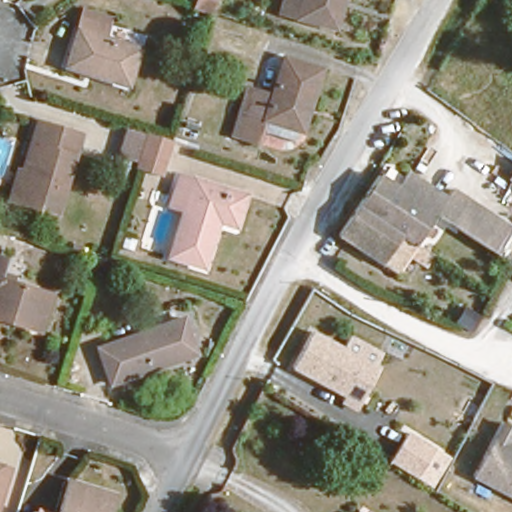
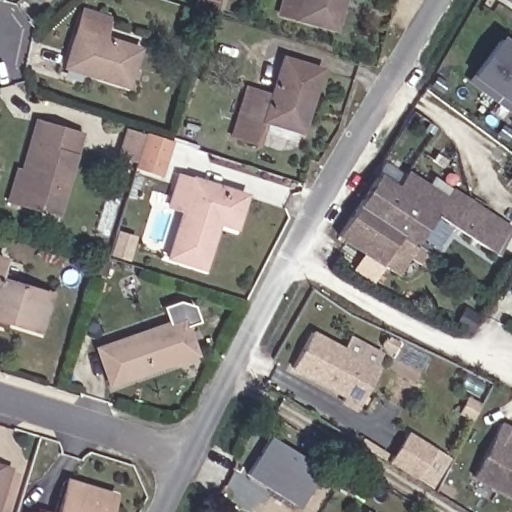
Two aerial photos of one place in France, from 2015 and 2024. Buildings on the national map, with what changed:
new [(209,10),(191,4),(192,0),(212,0),(209,10)]
unchanged [(267,7),(269,0),(341,0),(332,27),(267,7)]
unchanged [(62,60),(82,5),(106,11),(100,31),(141,44),(127,81),(62,60)]
new [(235,18),(222,56),(197,47),(209,10),(235,18)]
new [(502,39),(512,47),(512,101),(476,74),(502,39)]
unchanged [(246,80),(253,82),(271,88),(285,55),(323,67),(295,138),(259,126),(255,136),(235,129),(229,127),(246,80)]
unchanged [(16,163),(22,165),(32,137),(34,138),(43,117),(88,132),(56,214),(17,201),(4,197),(16,163)]
unchanged [(175,137),(161,177),(129,168),(140,129),(175,137)]
unchanged [(354,210),(380,170),(396,180),(407,165),(422,176),(448,194),(437,210),(413,246),(354,210)]
unchanged [(512,172),(512,183),(507,179),(512,172)]
unchanged [(217,218),(200,265),(162,252),(179,208),(164,203),(176,173),(245,196),(234,224),(217,218)]
unchanged [(512,227),(512,228),(497,254),(437,210),(448,194),(453,187),(512,227)]
unchanged [(393,276),(333,241),(354,210),(413,246),(393,276)]
unchanged [(8,258),(1,277),(55,295),(42,330),(0,316),(0,255),(8,258)]
unchanged [(53,277),(57,264),(68,269),(64,280),(53,277)]
unchanged [(106,381),(93,344),(184,319),(195,355),(106,381)]
unchanged [(372,367),(348,409),(282,373),(305,331),(372,367)]
unchanged [(503,443),(512,448),(512,501),(467,477),(491,421),(509,431),(503,443)]
new [(320,471),(300,507),(247,474),(268,436),(320,471)]
unchanged [(423,481),(395,463),(412,438),(441,456),(423,481)]
unchanged [(12,466),(0,501),(0,463),(12,466)]
unchanged [(103,488),(115,492),(107,512),(52,512),(64,475),(103,488)]
unchanged [(44,512),(26,512),(28,507),(44,512)]
unchanged [(371,512),(364,512),(366,509),(371,512)]

